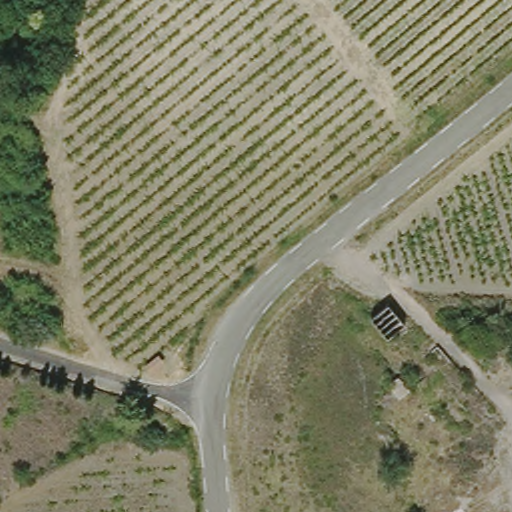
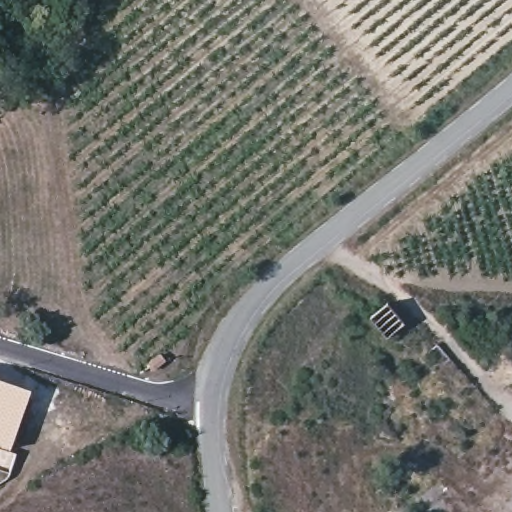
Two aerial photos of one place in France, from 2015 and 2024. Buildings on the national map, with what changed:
new [(28,395),(8,455),(0,452),(0,386),(28,395)]

